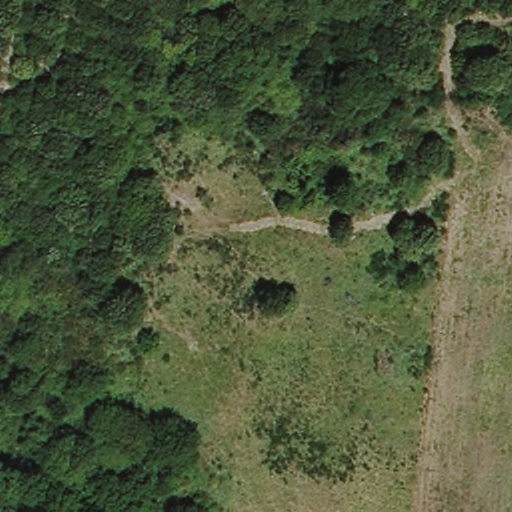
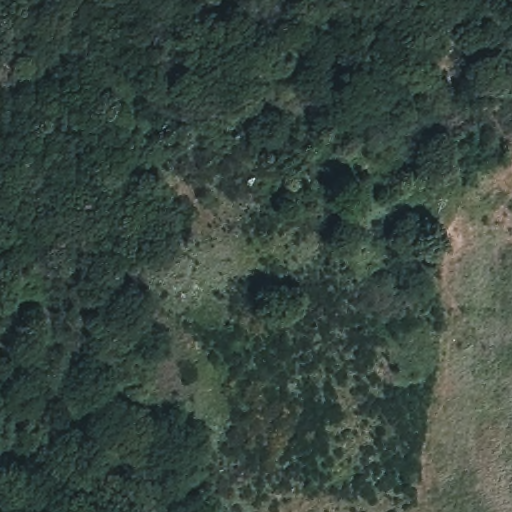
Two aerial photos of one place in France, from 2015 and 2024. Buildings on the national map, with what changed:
unchanged [(512,88),(512,119),(503,90),(512,88)]

